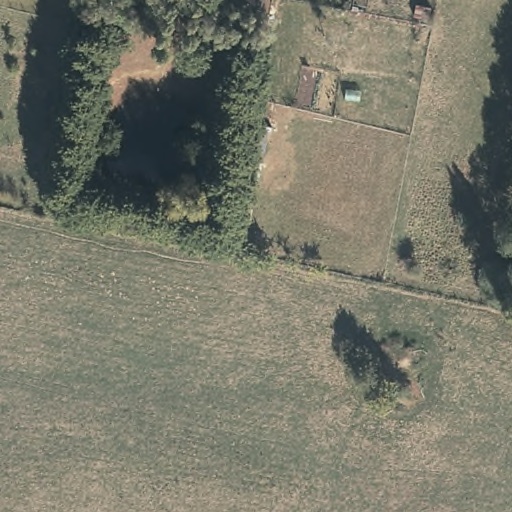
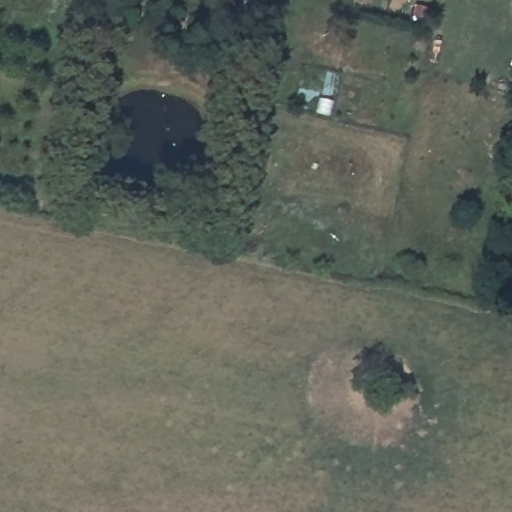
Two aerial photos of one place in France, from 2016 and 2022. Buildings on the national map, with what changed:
[]

